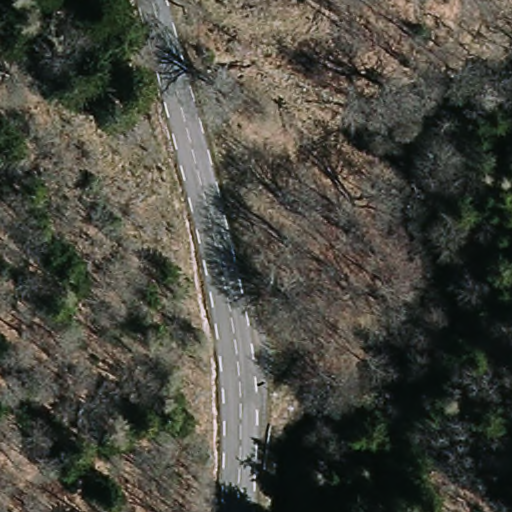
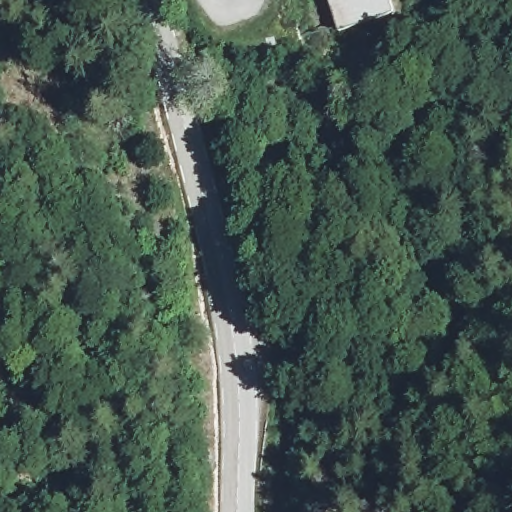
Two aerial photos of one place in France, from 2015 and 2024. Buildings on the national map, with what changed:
new [(400,11),(341,31),(330,0),(396,0),(400,11)]

